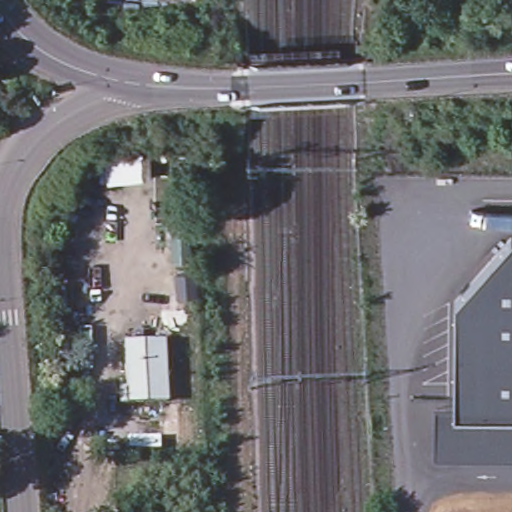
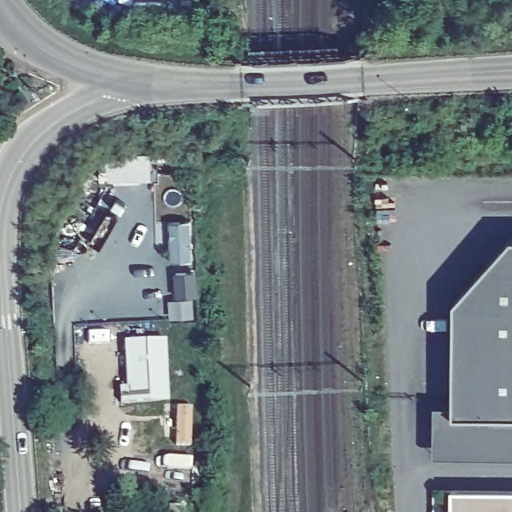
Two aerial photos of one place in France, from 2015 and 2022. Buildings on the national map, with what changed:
unchanged [(435,411),(453,412),(455,304),(512,241),(512,459),(435,456),(435,411)]
unchanged [(123,404),(120,344),(160,342),(163,401),(161,402),(149,402),(123,404)]
new [(512,491),(512,512),(450,512),(450,491),(512,491)]

